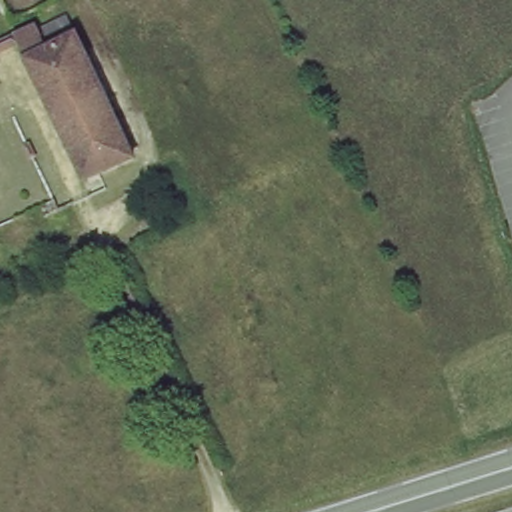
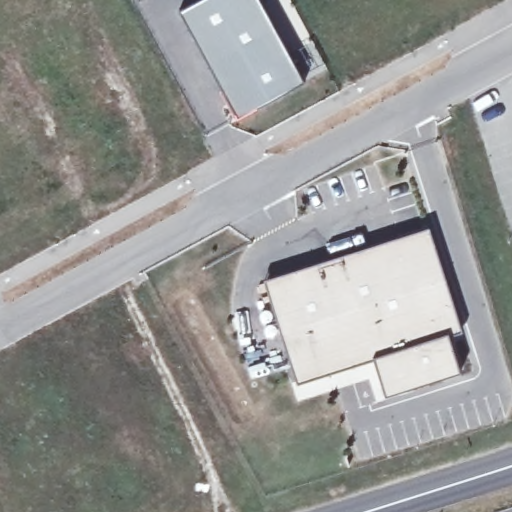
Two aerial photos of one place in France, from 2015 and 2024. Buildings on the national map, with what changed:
demolished [(6,0),(60,0),(60,1),(16,22),(6,0)]
new [(195,0),(261,0),(305,81),(237,117),(179,9),(195,0)]
unchanged [(45,23),(47,27),(70,16),(76,27),(78,26),(130,149),(85,170),(22,35),(45,23)]
demolished [(40,224),(32,208),(50,199),(62,195),(68,211),(40,224)]
new [(429,230),(463,333),(451,337),(461,372),(385,397),(374,361),(298,386),(266,282),(429,230)]

